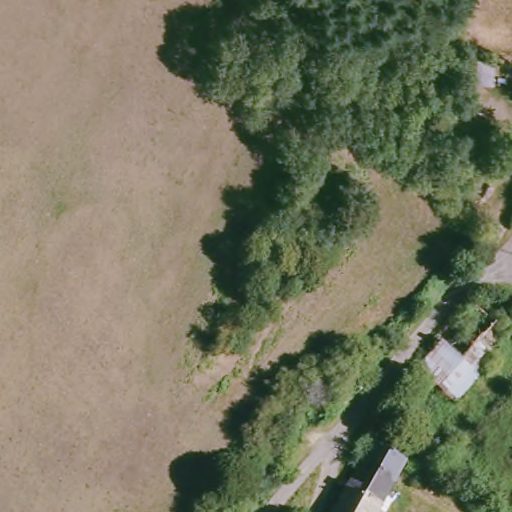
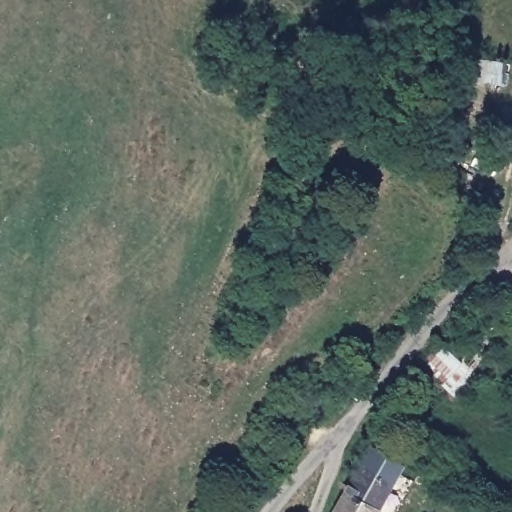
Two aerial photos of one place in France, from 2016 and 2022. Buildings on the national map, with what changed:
unchanged [(512,184),(478,176),(479,160),(512,167),(512,184)]
unchanged [(499,239),(490,236),(484,233),(489,204),(512,208),(512,241),(508,240),(499,239)]
unchanged [(473,305),(484,316),(503,331),(481,352),(467,367),(449,352),(436,342),(456,321),(472,305),(473,305)]
unchanged [(449,352),(467,367),(481,352),(494,367),(462,403),(426,375),(414,367),(436,342),(449,352)]
unchanged [(315,462),(313,465),(284,446),(314,410),(344,429),(315,462)]
unchanged [(334,510),(362,470),(375,451),(410,471),(397,491),(382,512),(334,512),(334,510)]
unchanged [(453,505),(416,485),(425,470),(428,471),(460,489),(453,505)]

